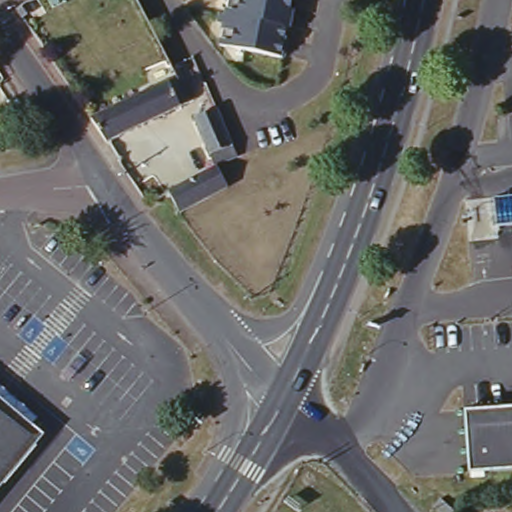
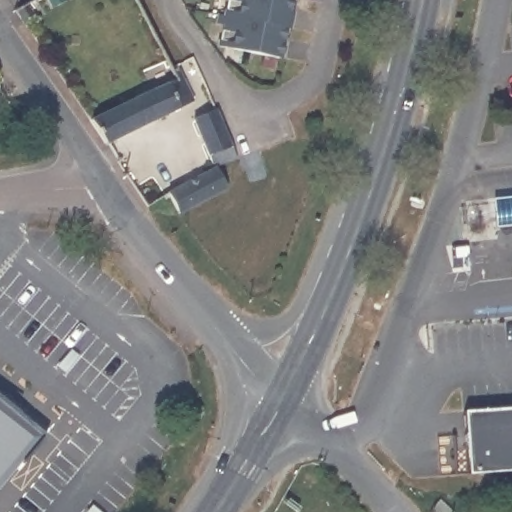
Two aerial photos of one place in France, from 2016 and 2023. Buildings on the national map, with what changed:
unchanged [(9,0),(18,0),(21,4),(17,6),(11,10),(5,2),(9,0)]
unchanged [(224,0),(292,0),(278,63),(214,51),(224,0)]
unchanged [(89,109),(93,115),(176,74),(188,98),(103,140),(82,112),(89,109)]
unchanged [(214,166),(194,117),(216,107),(225,126),(236,154),(217,165),(214,166)]
unchanged [(168,193),(214,166),(217,165),(229,186),(179,213),(168,193)]
unchanged [(494,198),(512,196),(512,224),(497,225),(494,198)]
unchanged [(0,387),(35,418),(29,426),(40,436),(0,482),(0,387)]
unchanged [(467,404),(512,403),(512,466),(469,467),(467,404)]

